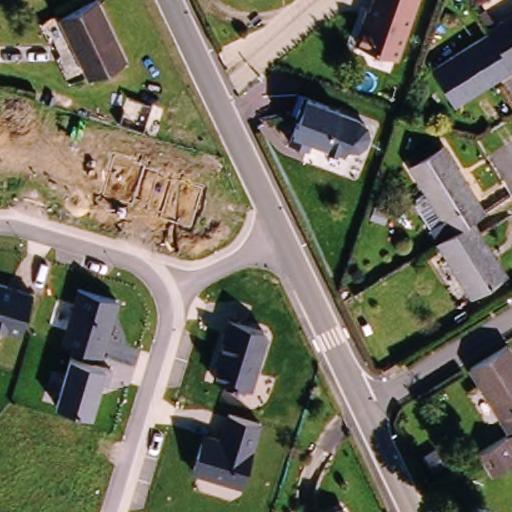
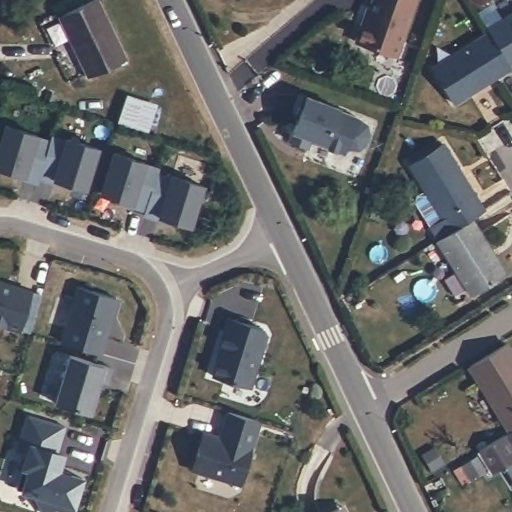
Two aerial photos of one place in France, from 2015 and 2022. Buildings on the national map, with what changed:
unchanged [(95,0),(123,60),(85,77),(57,18),(95,0)]
unchanged [(400,55),(357,43),(371,0),(418,0),(400,55)]
unchanged [(482,31),(480,28),(512,9),(512,58),(503,64),(482,31)]
unchanged [(503,64),(505,68),(449,103),(425,67),(482,31),(503,64)]
unchanged [(364,116),(369,121),(370,131),(367,142),(359,148),(349,146),(345,155),(290,135),(302,100),(305,94),(364,116)]
new [(126,98),(151,105),(143,131),(118,124),(126,98)]
new [(5,125),(37,135),(35,136),(50,141),(52,136),(66,140),(67,138),(97,148),(85,189),(54,179),(55,174),(41,169),(40,174),(25,170),(24,175),(0,168),(0,141),(5,125)]
unchanged [(407,164),(442,143),(459,170),(475,197),(484,210),(470,219),(449,232),(407,164)]
new [(190,227),(159,217),(161,212),(147,208),(148,202),(134,198),(132,203),(101,194),(114,153),(145,163),(145,165),(159,169),(157,174),(172,179),(172,177),(203,187),(190,227)]
unchanged [(449,232),(470,219),(504,274),(469,295),(435,240),(449,232)]
unchanged [(19,330),(0,325),(0,279),(32,288),(19,330)]
unchanged [(117,297),(102,354),(64,344),(80,286),(117,297)]
unchanged [(267,330),(250,390),(212,378),(230,317),(267,330)]
unchanged [(507,345),(512,354),(512,429),(508,432),(469,367),(507,345)]
unchanged [(70,355),(105,365),(90,414),(55,402),(70,355)]
unchanged [(260,421),(241,484),(192,471),(204,434),(222,439),(229,412),(260,421)]
new [(19,443),(27,415),(65,426),(57,453),(64,455),(59,472),(83,480),(73,512),(68,512),(56,508),(49,512),(42,512),(33,494),(16,489),(29,446),(19,443)]
unchanged [(512,429),(512,460),(494,472),(479,450),(508,432),(512,429)]
unchanged [(341,512),(320,512),(337,504),(341,512)]

